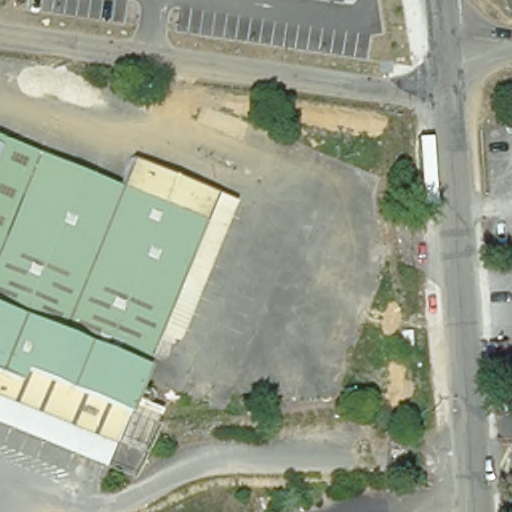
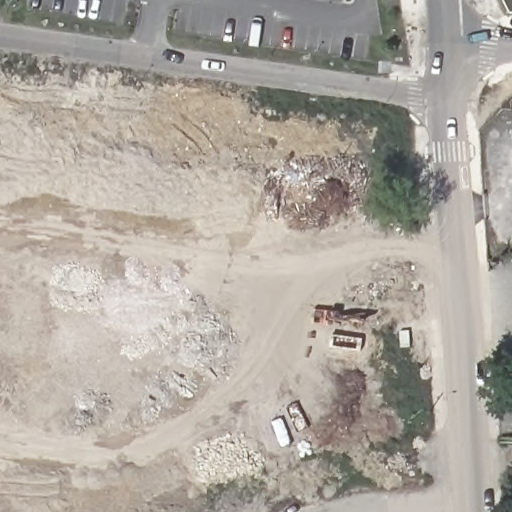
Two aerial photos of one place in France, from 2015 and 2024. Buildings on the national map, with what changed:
demolished [(129,158),(233,200),(175,341),(155,333),(133,389),(142,393),(138,402),(129,398),(111,441),(110,443),(0,398),(0,138),(117,186),(129,158)]

